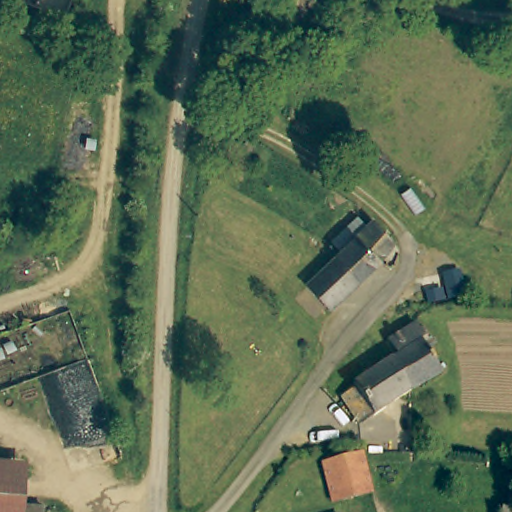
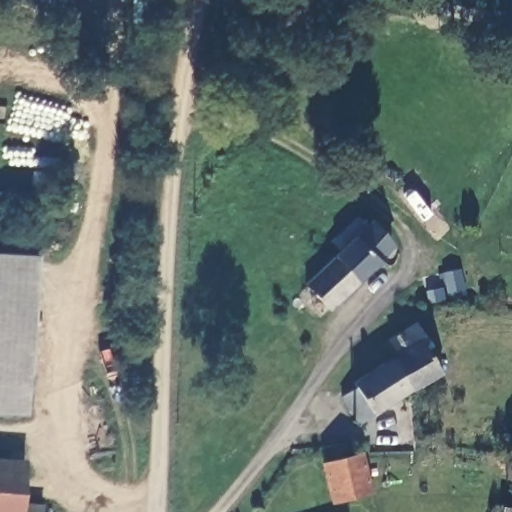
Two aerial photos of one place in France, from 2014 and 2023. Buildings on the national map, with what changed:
unchanged [(326,308),(302,283),(336,252),(326,241),(341,227),(353,215),(363,225),(372,217),(397,242),(326,308)]
new [(29,415),(0,413),(0,253),(39,256),(29,415)]
unchanged [(432,269),(468,272),(466,293),(431,290),(432,269)]
unchanged [(396,347),(387,334),(411,319),(428,348),(436,343),(443,354),(433,361),(439,369),(407,389),(387,355),(396,347)]
unchanged [(356,423),(340,396),(355,384),(351,378),(387,355),(407,389),(356,423)]
unchanged [(369,489),(330,499),(323,459),(344,454),(363,452),(369,489)]
new [(20,503),(20,512),(0,512),(0,459),(28,461),(26,504),(20,503)]
unchanged [(42,504),(42,512),(20,512),(20,503),(42,504)]
unchanged [(508,509),(509,504),(512,505),(512,512),(508,512),(508,509)]
unchanged [(340,511),(340,512),(334,512),(340,511)]

